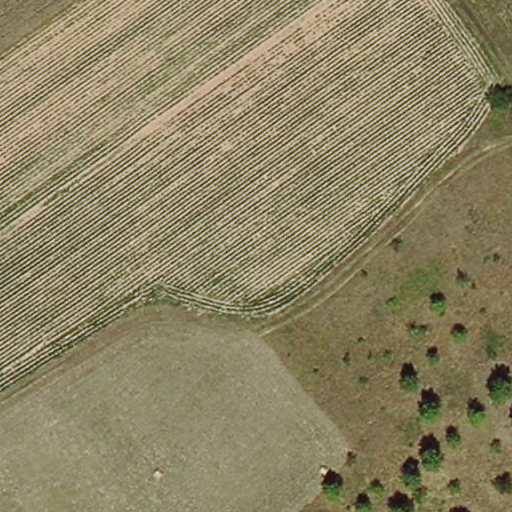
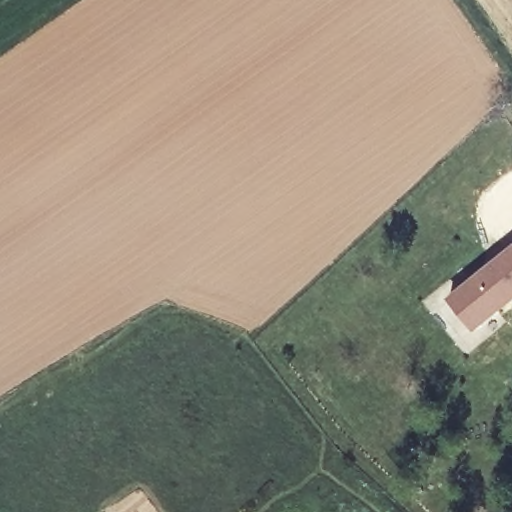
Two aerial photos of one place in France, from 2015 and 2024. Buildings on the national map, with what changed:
new [(512,244),(512,300),(474,331),(447,297),(512,244)]

